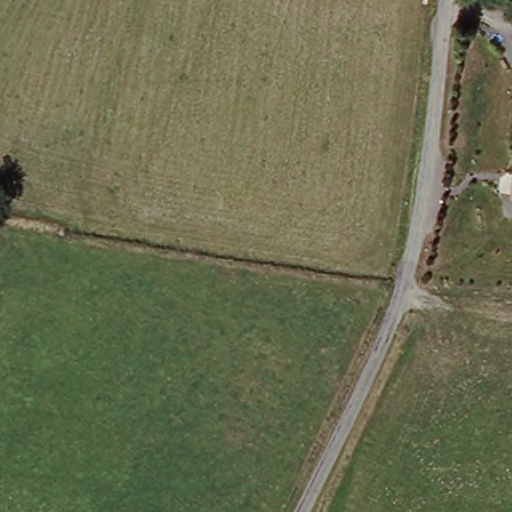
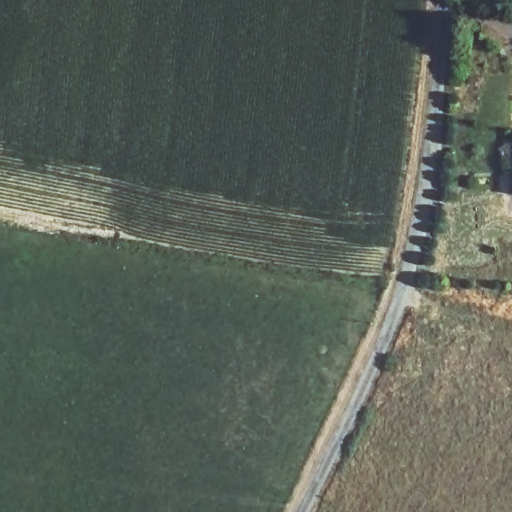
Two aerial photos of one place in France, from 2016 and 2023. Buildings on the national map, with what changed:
[]

